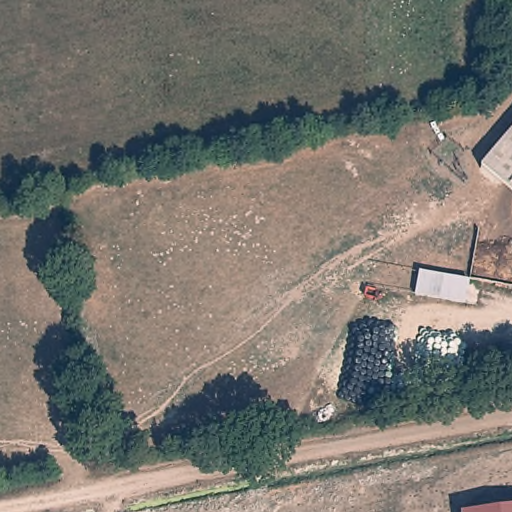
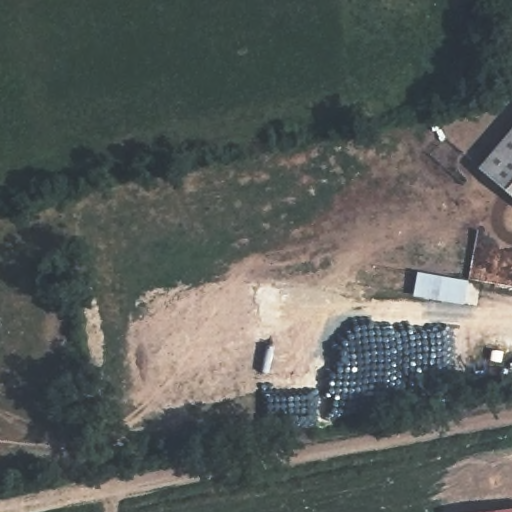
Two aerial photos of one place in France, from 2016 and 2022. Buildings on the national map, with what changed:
unchanged [(499,181),(512,166),(512,193),(511,192),(499,181)]
unchanged [(470,282),(465,307),(414,299),(419,273),(470,282)]
unchanged [(512,512),(488,512),(512,509),(512,512)]

